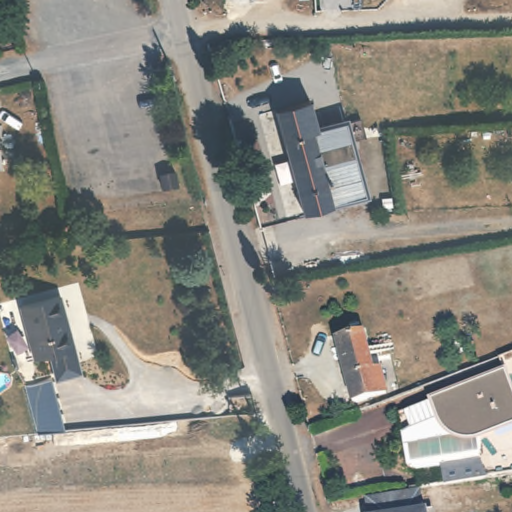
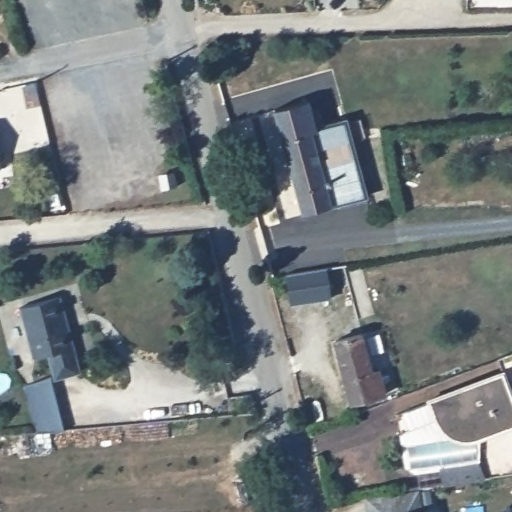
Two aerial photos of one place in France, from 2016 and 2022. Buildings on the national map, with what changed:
unchanged [(292,33),(292,44),(275,44),(275,33),(292,33)]
unchanged [(346,126),(362,191),(300,207),(278,110),(313,102),(316,118),(309,120),(313,135),(346,126)]
unchanged [(0,167),(0,159),(1,167),(0,167)]
new [(332,298),(289,305),(285,275),(326,268),(332,298)]
unchanged [(58,295),(73,345),(35,355),(20,306),(58,295)]
unchanged [(346,400),(345,391),(333,336),(360,331),(367,367),(377,366),(380,383),(382,392),(346,400)]
unchanged [(73,345),(80,371),(56,377),(47,352),(73,345)]
unchanged [(512,352),(512,474),(442,484),(440,468),(415,473),(403,464),(399,433),(409,426),(403,410),(428,401),(427,398),(503,369),(498,357),(512,352)]
unchanged [(38,432),(27,383),(47,378),(63,429),(38,432)]
unchanged [(421,512),(360,512),(356,498),(417,486),(421,512)]

